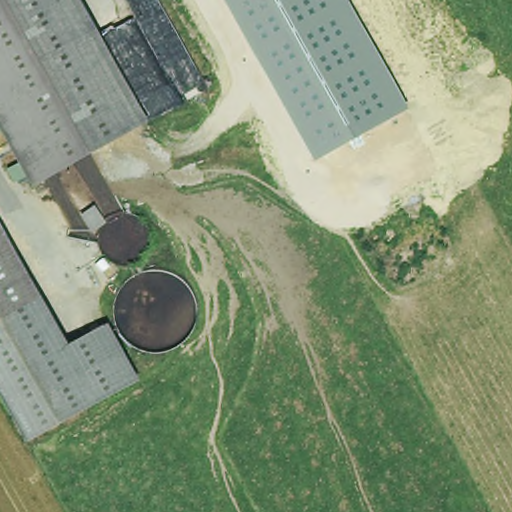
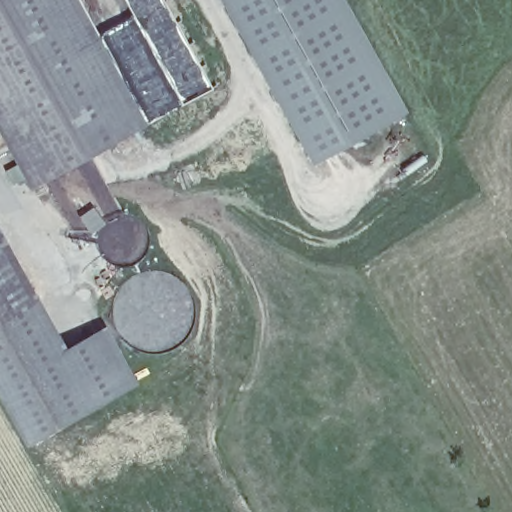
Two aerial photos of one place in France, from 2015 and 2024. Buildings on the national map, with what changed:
unchanged [(0,0),(77,0),(146,122),(27,186),(0,137),(0,0)]
unchanged [(407,110),(313,162),(222,0),(345,0),(407,110)]
unchanged [(0,227),(69,346),(106,329),(137,385),(24,450),(0,406),(0,227)]

